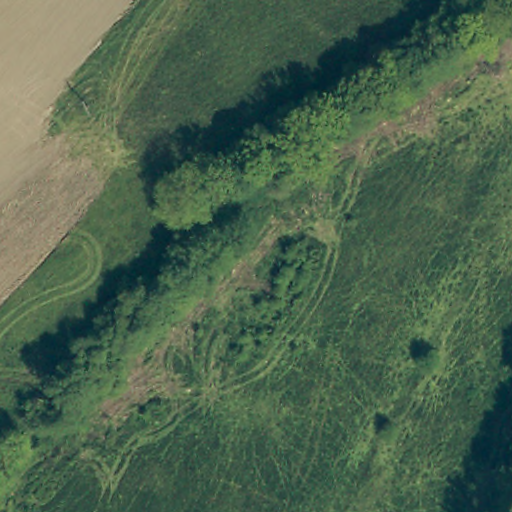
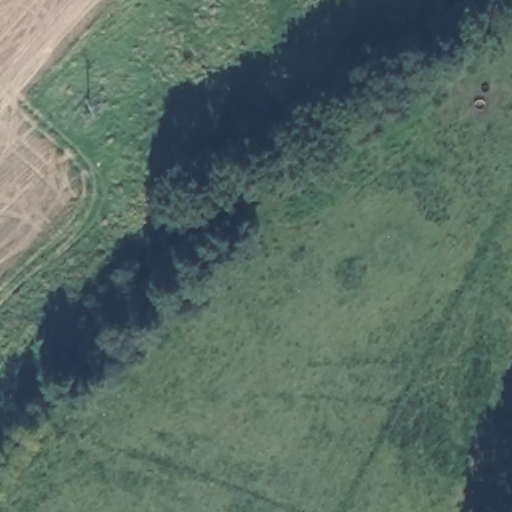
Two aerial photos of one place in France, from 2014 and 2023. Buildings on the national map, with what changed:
unchanged [(482,33),(493,50),(463,69),(452,53),(482,33)]

